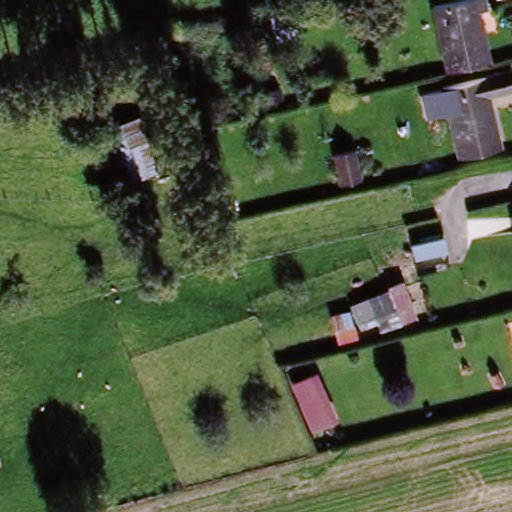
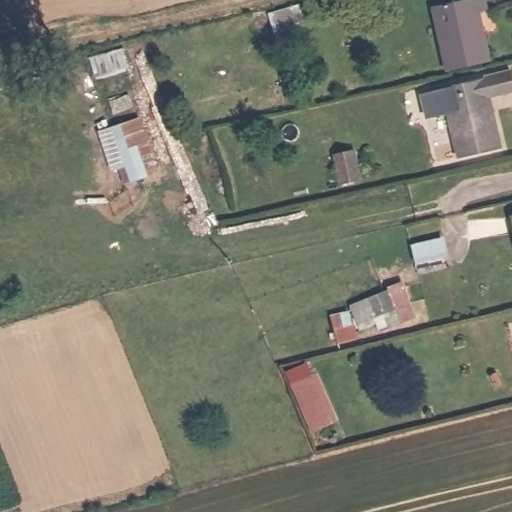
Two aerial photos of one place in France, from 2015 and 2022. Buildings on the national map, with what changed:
unchanged [(446,75),(430,11),(477,0),(482,0),(485,11),(477,13),(490,65),(446,75)]
unchanged [(270,18),(303,10),(307,29),(298,33),(302,44),(278,49),(270,18)]
unchanged [(459,164),(445,96),(497,85),(500,97),(487,100),(500,155),(459,164)]
unchanged [(113,132),(142,125),(158,179),(130,187),(113,132)]
unchanged [(335,159),(355,155),(360,185),(340,187),(335,159)]
unchanged [(423,262),(419,231),(445,226),(449,260),(423,262)]
unchanged [(381,337),(378,330),(362,335),(365,344),(342,349),(333,320),(352,316),(350,312),(407,287),(419,321),(381,337)]
unchanged [(315,435),(298,391),(315,385),(332,428),(315,435)]

